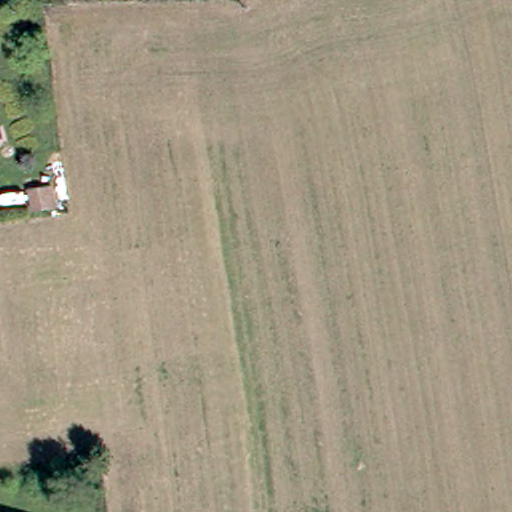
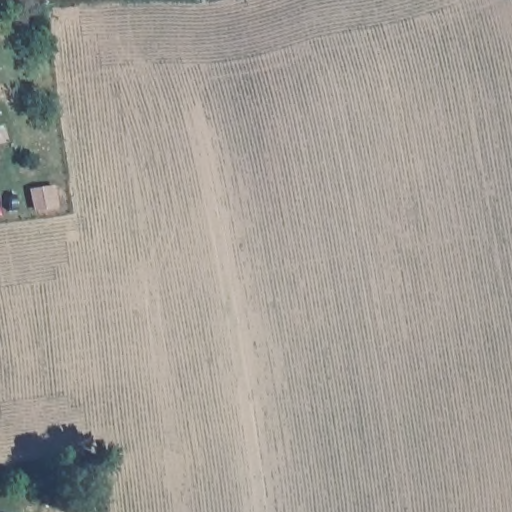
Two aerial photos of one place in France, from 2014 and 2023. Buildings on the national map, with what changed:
unchanged [(25,192),(42,189),(46,215),(28,217),(25,192)]

